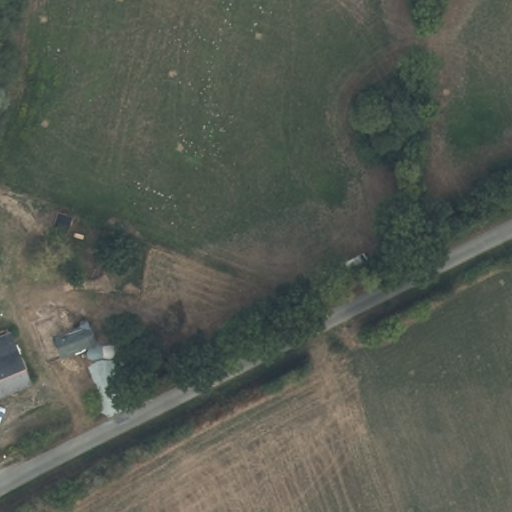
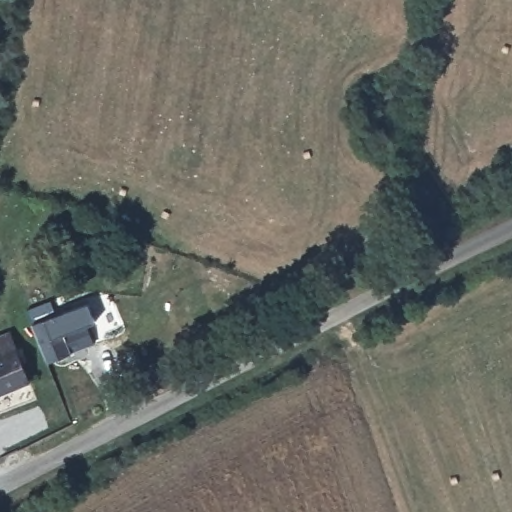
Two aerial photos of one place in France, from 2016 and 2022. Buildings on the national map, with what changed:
new [(27,308),(51,299),(56,312),(63,330),(87,320),(97,342),(71,352),(49,362),(31,321),(27,308)]
demolished [(99,342),(65,358),(57,341),(90,325),(99,342)]
unchanged [(14,330),(32,377),(0,388),(0,335),(14,330)]

